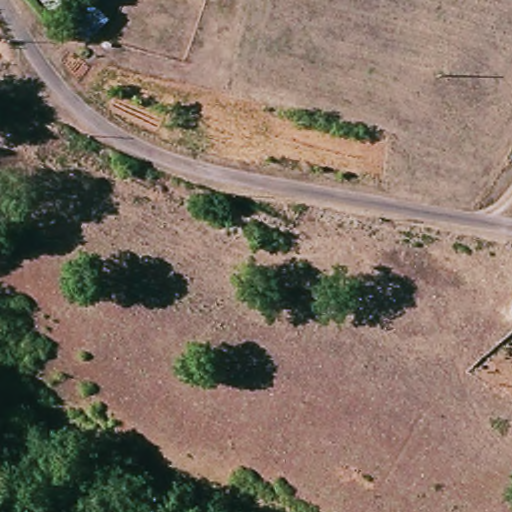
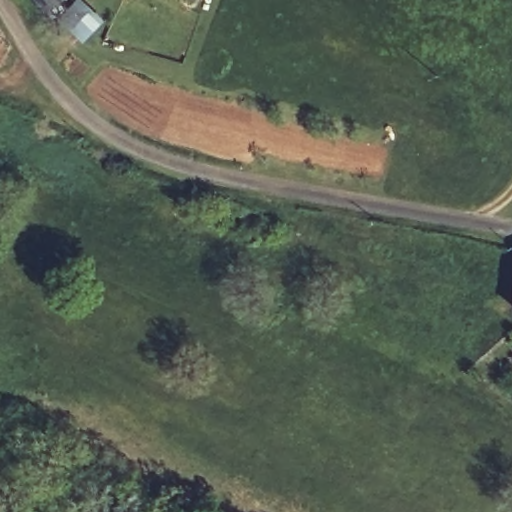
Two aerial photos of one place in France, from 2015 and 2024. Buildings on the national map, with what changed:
unchanged [(42,0),(31,8),(26,0),(42,0)]

